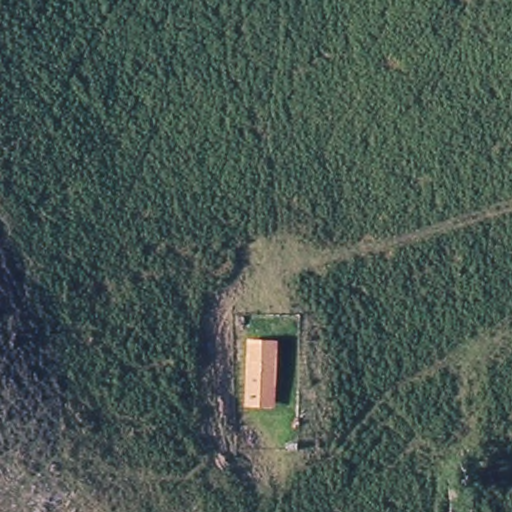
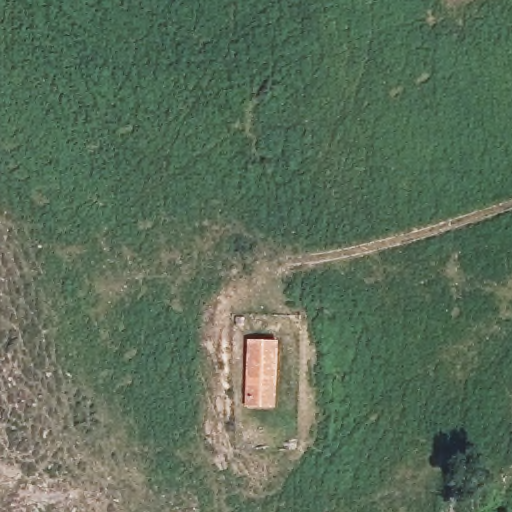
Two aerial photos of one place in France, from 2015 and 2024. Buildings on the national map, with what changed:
unchanged [(278,398),(252,397),(251,343),(278,340),(278,398)]

